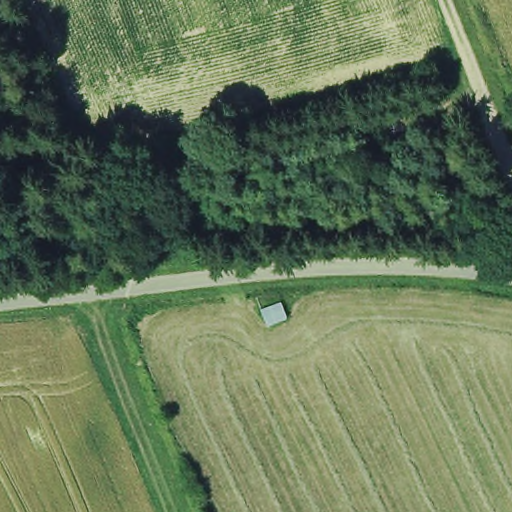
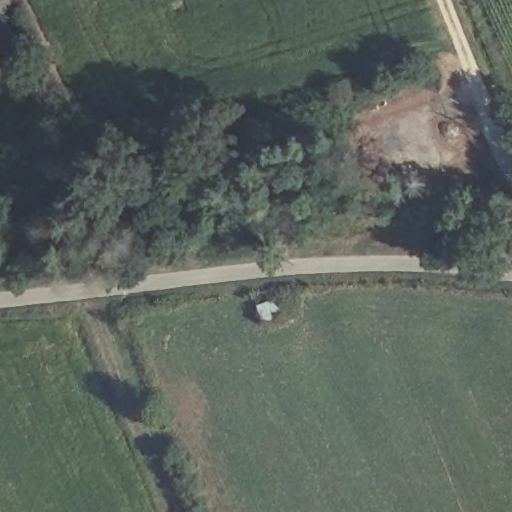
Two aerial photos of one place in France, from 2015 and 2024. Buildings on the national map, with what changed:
unchanged [(289,321),(262,327),(258,308),(280,299),(289,321)]

